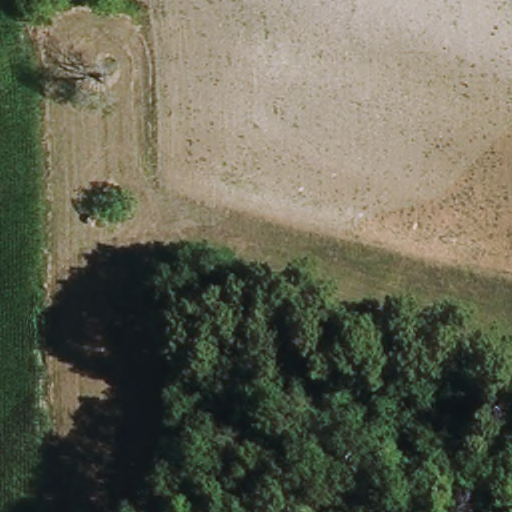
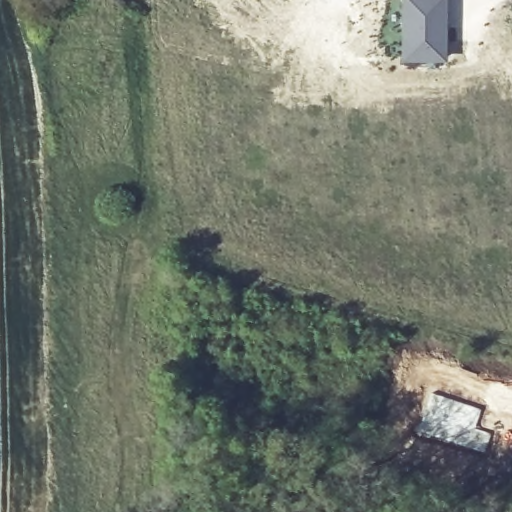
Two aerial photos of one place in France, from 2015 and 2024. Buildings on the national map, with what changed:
new [(399,0),(448,0),(446,62),(399,63),(399,0)]

